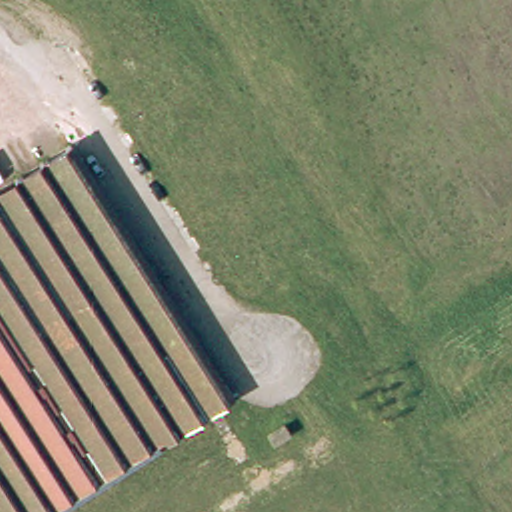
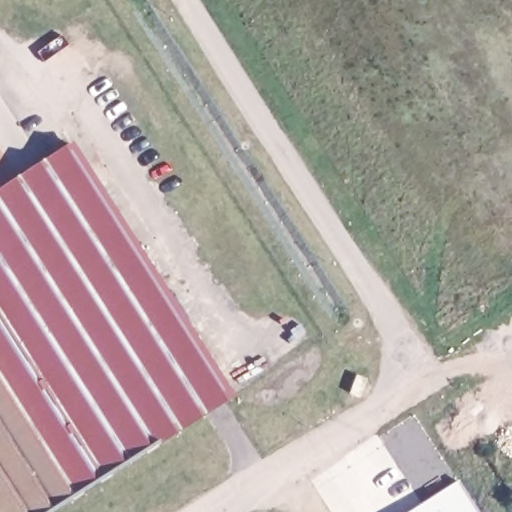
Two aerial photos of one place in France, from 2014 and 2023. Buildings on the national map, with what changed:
unchanged [(10,149),(17,168),(64,140),(227,395),(157,436),(162,451),(63,512),(0,512),(0,155),(10,149)]
new [(479,512),(406,512),(457,479),(479,512)]

